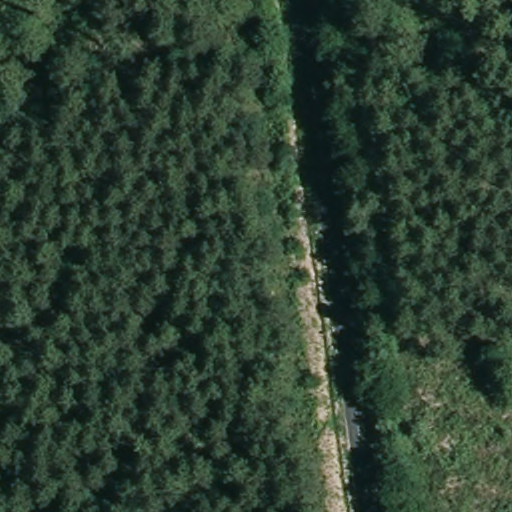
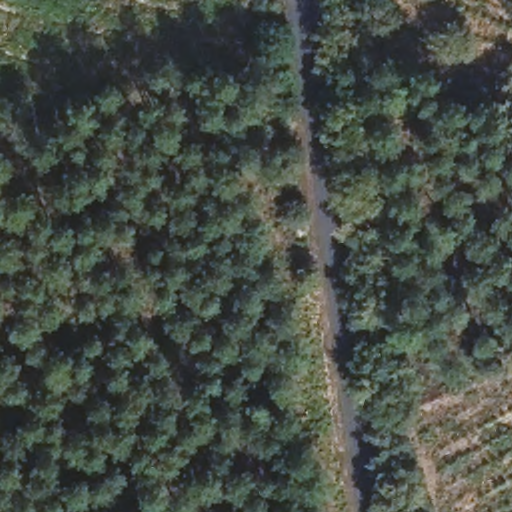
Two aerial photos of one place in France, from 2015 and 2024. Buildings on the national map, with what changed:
[]

